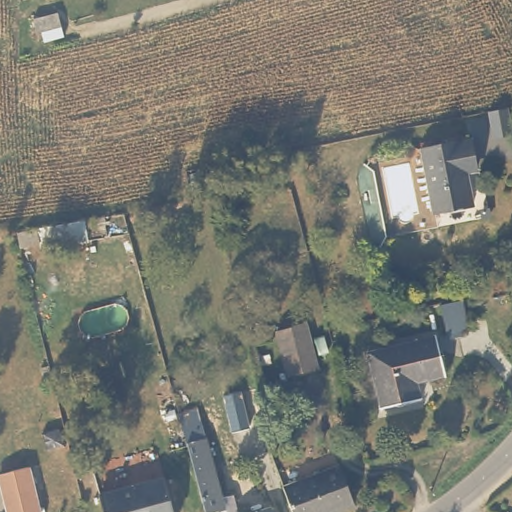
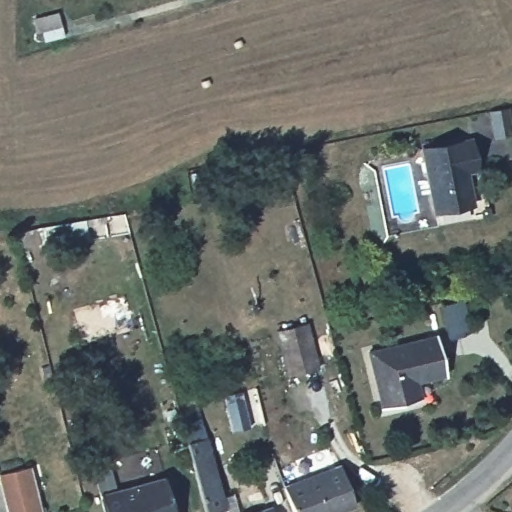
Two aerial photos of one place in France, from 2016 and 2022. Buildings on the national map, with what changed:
unchanged [(62,10),(67,34),(39,39),(34,16),(62,10)]
unchanged [(465,137),(473,166),(464,169),(471,200),(434,210),(419,148),(465,137)]
unchanged [(456,329),(442,332),(436,308),(450,304),(456,329)]
unchanged [(304,319),(315,364),(283,372),(272,327),(304,319)]
unchanged [(443,367),(416,374),(420,392),(382,401),(370,351),(435,334),(443,367)]
unchanged [(189,428),(208,423),(231,509),(216,512),(212,512),(189,428)]
unchanged [(286,491),(340,466),(357,504),(338,512),(295,512),(286,491)]
unchanged [(39,512),(8,512),(0,482),(0,473),(24,468),(28,467),(39,512)]
unchanged [(163,477),(173,512),(104,512),(100,495),(163,477)]
unchanged [(277,512),(264,512),(276,508),(277,512)]

